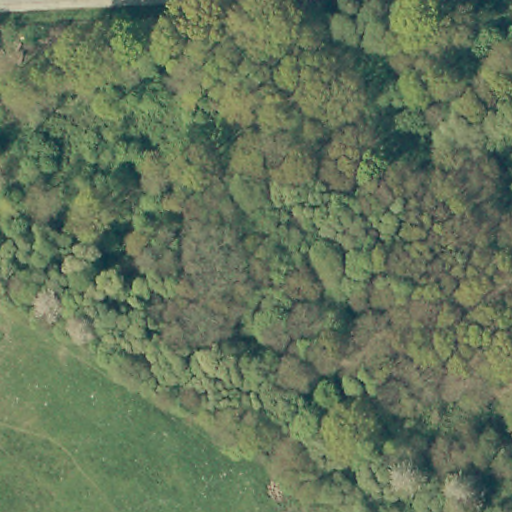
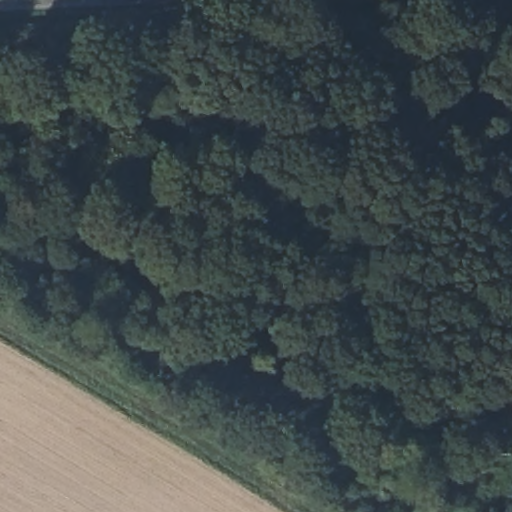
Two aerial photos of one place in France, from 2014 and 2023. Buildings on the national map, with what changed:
[]

